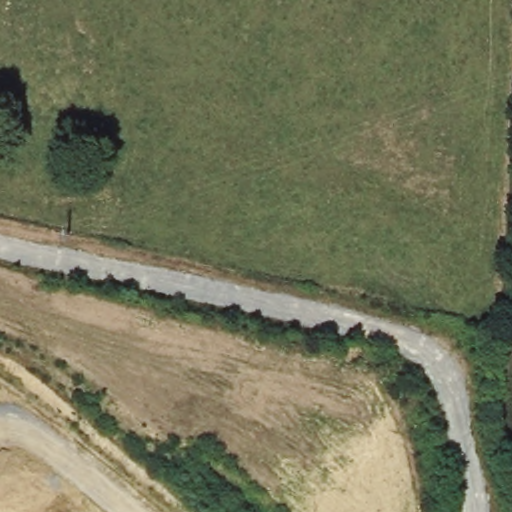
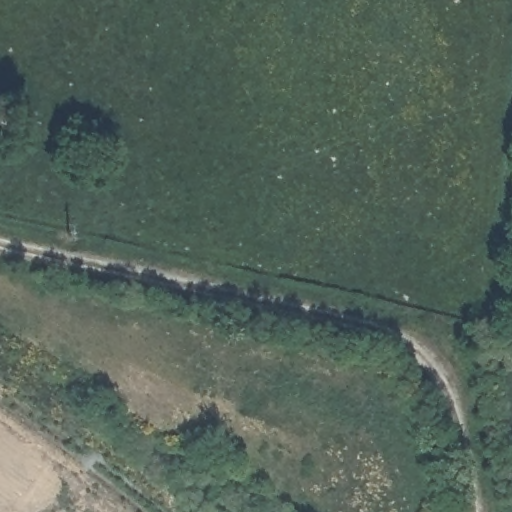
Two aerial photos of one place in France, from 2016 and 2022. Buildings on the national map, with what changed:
[]

